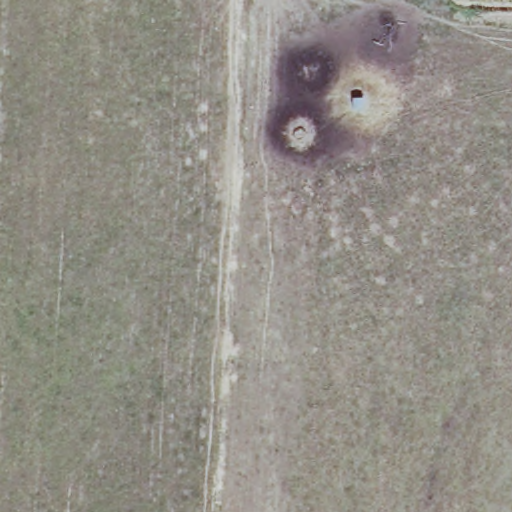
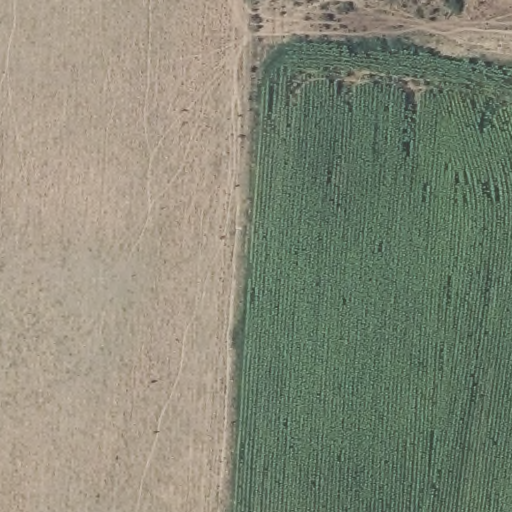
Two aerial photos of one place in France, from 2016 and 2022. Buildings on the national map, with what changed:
[]

